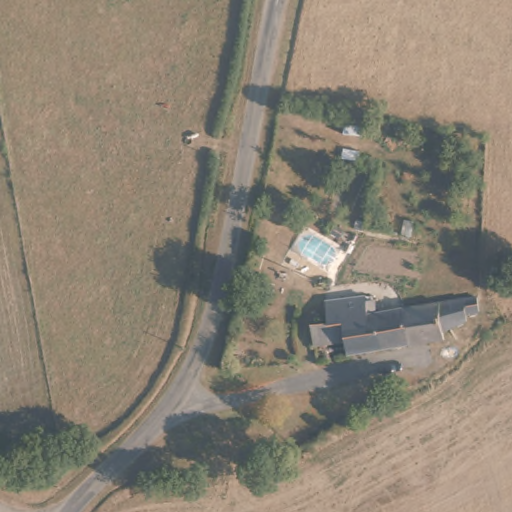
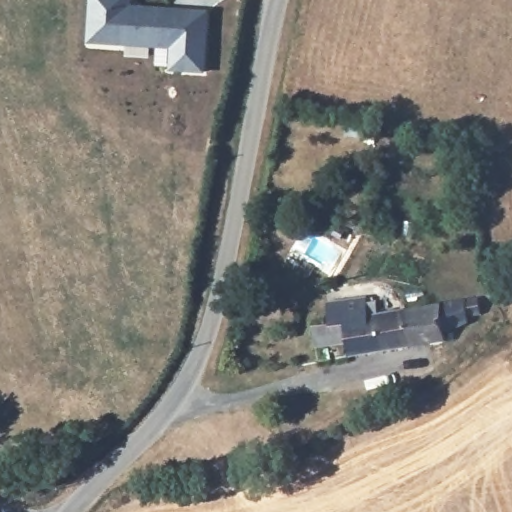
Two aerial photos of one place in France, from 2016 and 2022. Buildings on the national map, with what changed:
new [(132,0),(132,4),(208,9),(204,72),(168,70),(169,49),(86,44),(88,0),(132,0)]
unchanged [(471,291),(479,315),(462,320),(451,322),(451,330),(429,340),(429,348),(417,350),(357,360),(343,362),(344,346),(317,350),(315,325),(330,323),(328,302),(340,300),(376,296),(378,314),(394,312),(411,310),(471,291)]

